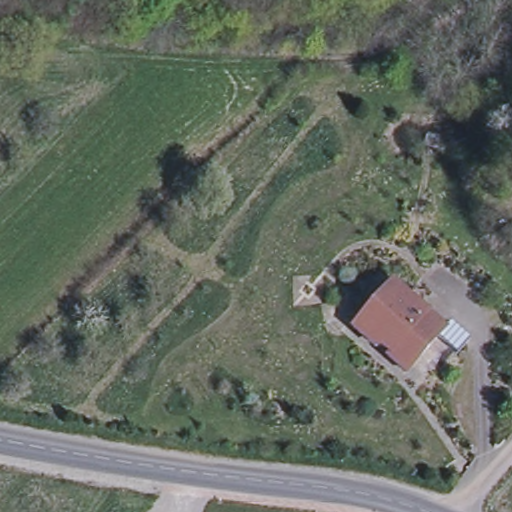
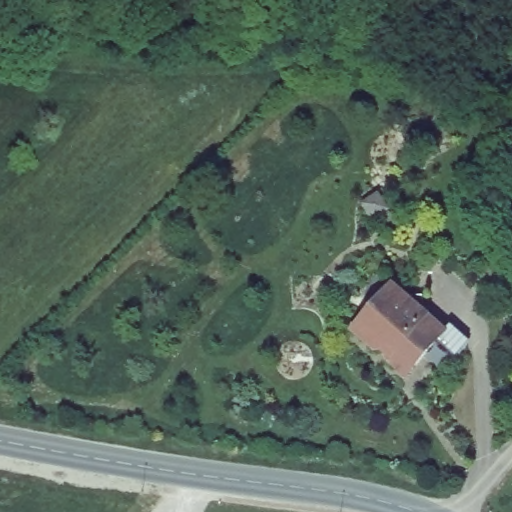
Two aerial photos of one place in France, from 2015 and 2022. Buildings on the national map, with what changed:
unchanged [(387,286),(421,315),(440,331),(403,375),(384,359),(387,355),(380,349),(372,349),(349,330),(379,295),(387,286)]

